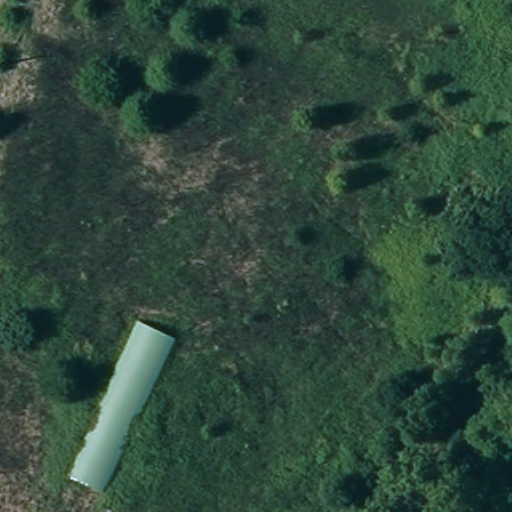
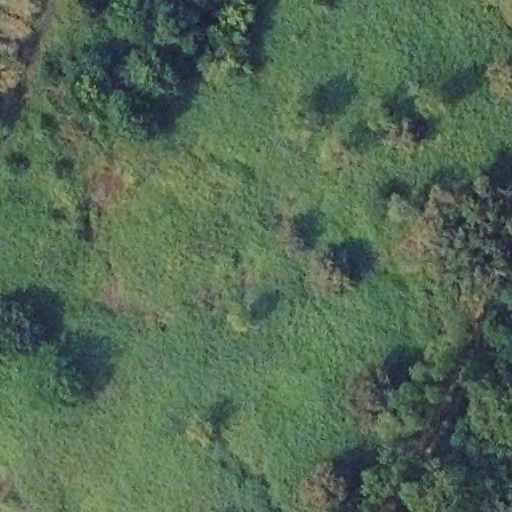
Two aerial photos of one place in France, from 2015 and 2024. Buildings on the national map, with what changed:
demolished [(130,334),(167,353),(102,495),(65,478),(130,334)]

